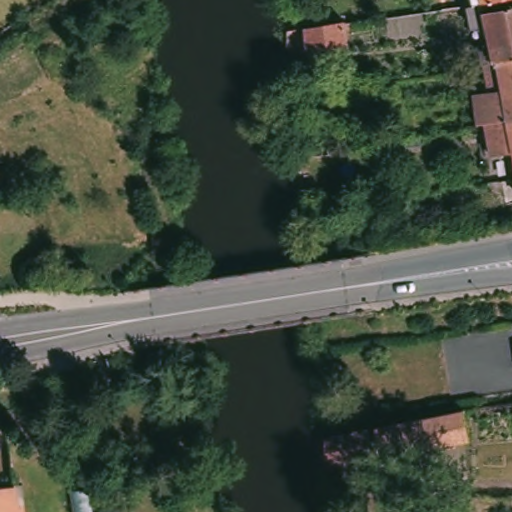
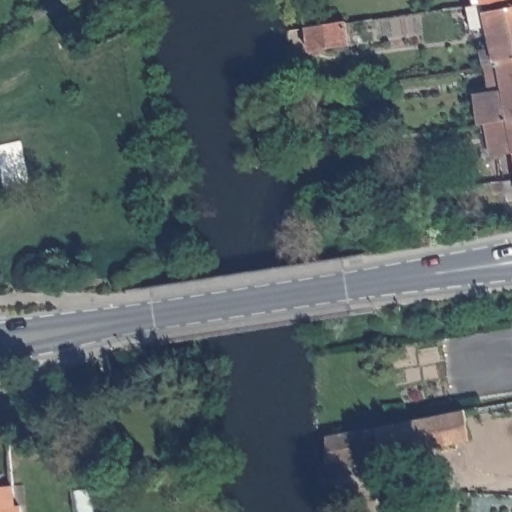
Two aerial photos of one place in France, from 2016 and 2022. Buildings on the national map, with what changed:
unchanged [(478,5),(471,6),(469,0),(499,0),(478,5)]
unchanged [(512,7),(512,31),(488,37),(485,37),(480,14),(512,7)]
unchanged [(346,20),(346,23),(349,43),(311,49),(310,36),(298,38),(296,27),(346,20)]
unchanged [(512,31),(512,57),(493,61),(490,62),(485,37),(488,37),(512,31)]
unchanged [(483,122),(474,124),(468,95),(498,90),(493,61),(512,57),(512,153),(511,154),(490,157),(483,122)]
unchanged [(512,153),(512,161),(511,154),(512,153)]
unchanged [(459,413),(466,445),(323,473),(322,441),(459,413)]
unchanged [(12,508),(17,508),(17,512),(0,512),(0,490),(8,489),(12,508)]
unchanged [(90,512),(77,512),(76,505),(74,497),(87,495),(90,512)]

